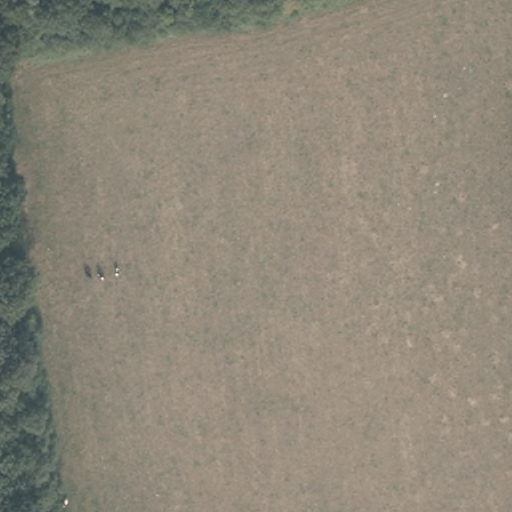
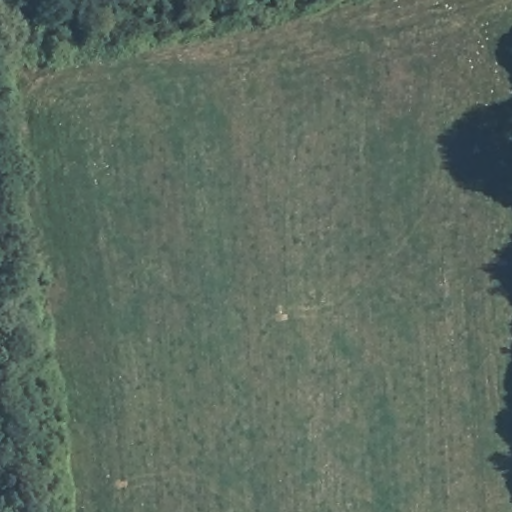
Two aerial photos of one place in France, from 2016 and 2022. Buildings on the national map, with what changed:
[]

